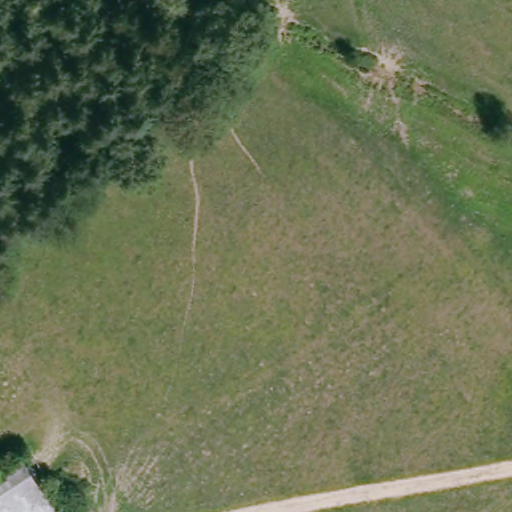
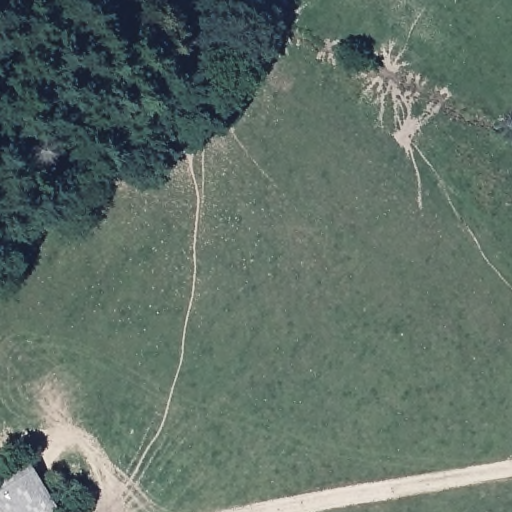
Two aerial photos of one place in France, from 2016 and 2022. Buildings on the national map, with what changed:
unchanged [(23,460),(53,512),(0,512),(0,474),(23,460)]

